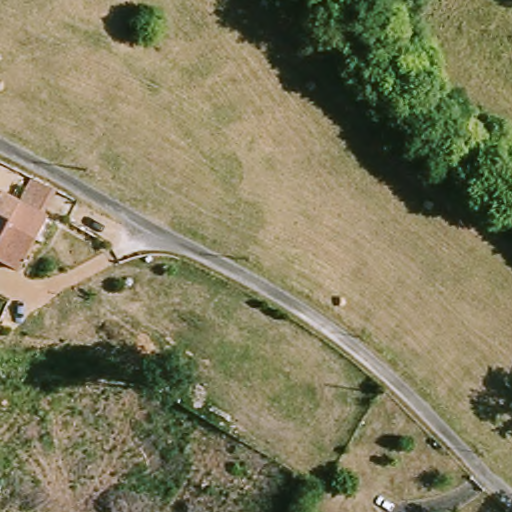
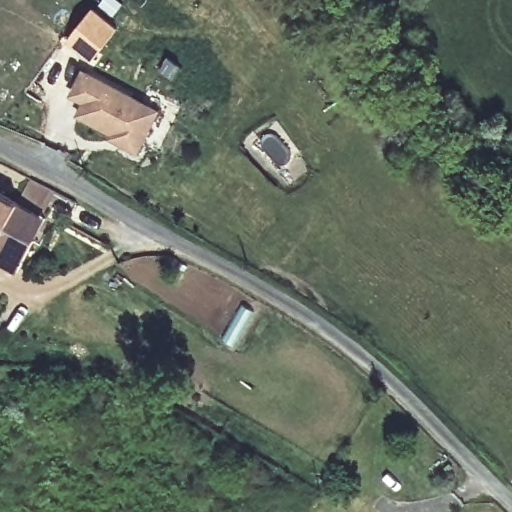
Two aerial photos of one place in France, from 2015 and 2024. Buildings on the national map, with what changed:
new [(162,108),(139,155),(111,141),(114,135),(76,117),(81,103),(69,98),(83,69),(162,108)]
unchanged [(21,273),(0,264),(0,192),(49,215),(21,273)]

